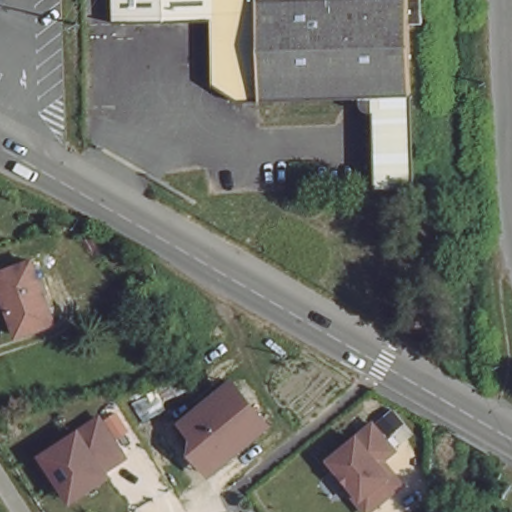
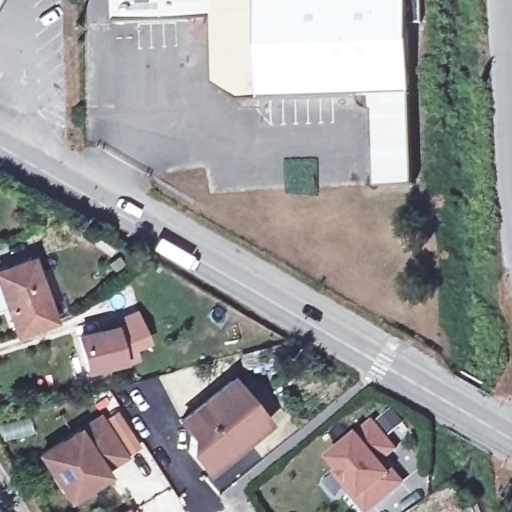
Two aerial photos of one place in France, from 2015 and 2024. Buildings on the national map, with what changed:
unchanged [(407,28),(414,184),(375,185),(370,98),(245,99),(218,81),(216,17),(121,17),(120,0),(422,0),(422,25),(407,28)]
unchanged [(54,322),(13,337),(0,300),(0,269),(32,257),(54,322)]
new [(103,325),(120,316),(135,308),(149,336),(134,344),(138,353),(93,369),(80,336),(104,327),(103,325)]
unchanged [(209,468),(175,422),(234,375),(271,421),(209,468)]
unchanged [(69,501),(32,452),(97,408),(129,456),(69,501)]
unchanged [(365,511),(320,459),(375,417),(400,447),(386,462),(404,484),(365,511)]

